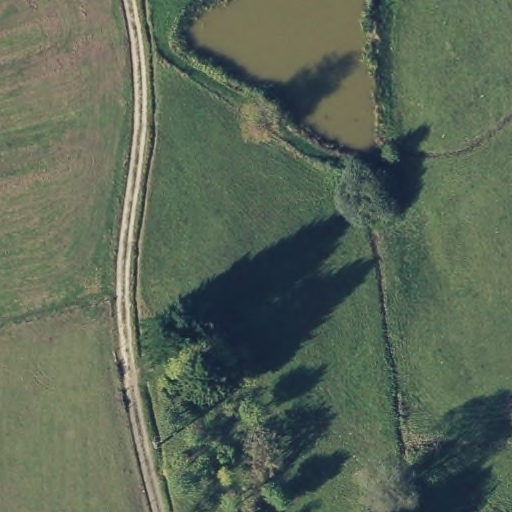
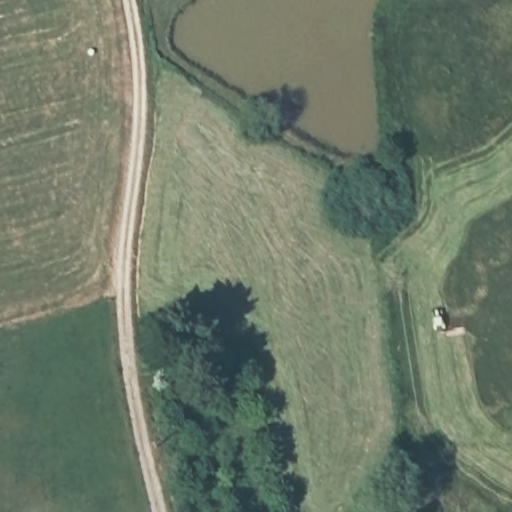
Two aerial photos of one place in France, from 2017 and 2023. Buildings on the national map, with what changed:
unchanged [(212,370),(237,365),(239,379),(214,383),(212,370)]

